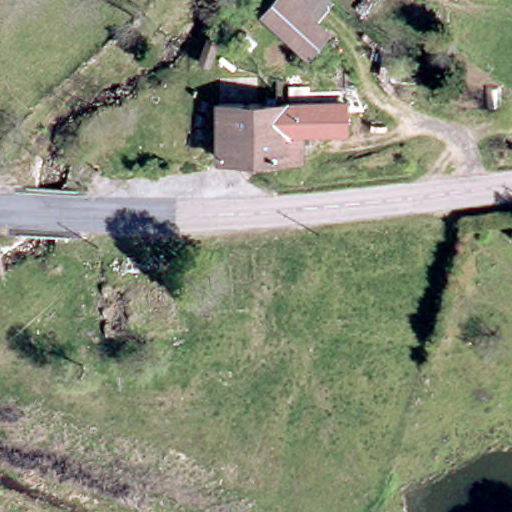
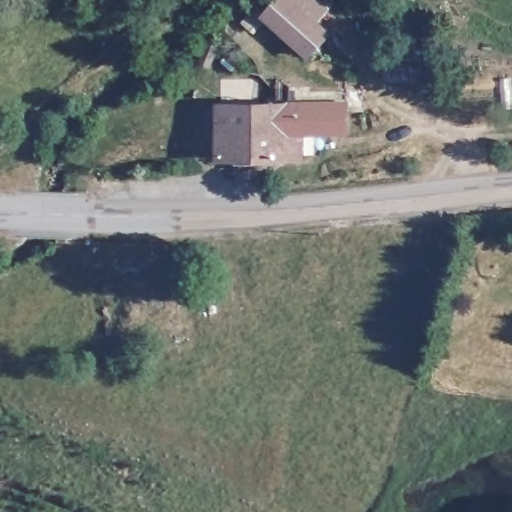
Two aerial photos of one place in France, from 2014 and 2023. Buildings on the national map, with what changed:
unchanged [(269,15),(285,0),(322,0),(326,4),(311,18),(331,40),(309,61),(269,15)]
unchanged [(348,104),(350,135),(303,135),(292,135),(292,109),(348,104)]
unchanged [(292,135),(303,135),(303,160),(292,160),(292,163),(221,163),(221,109),(292,109),(292,135)]

